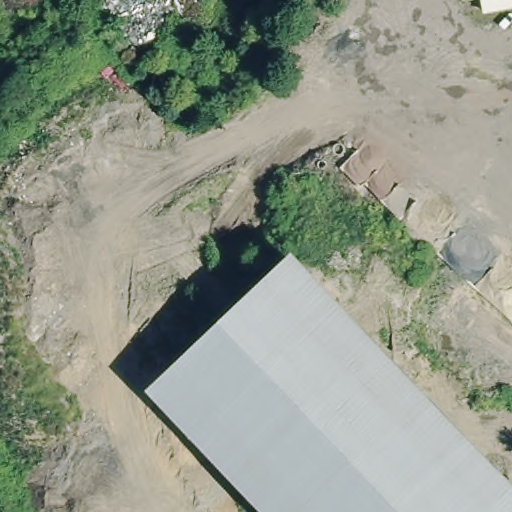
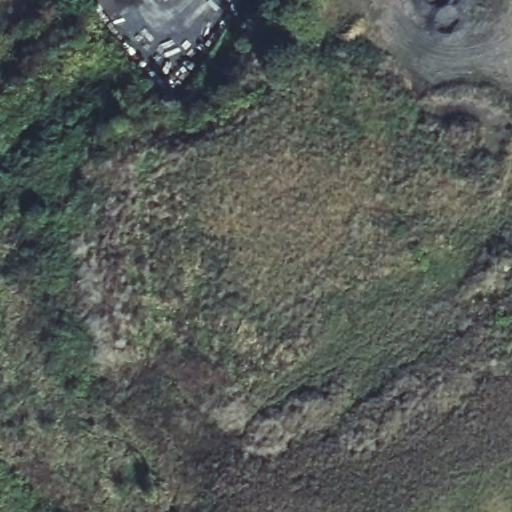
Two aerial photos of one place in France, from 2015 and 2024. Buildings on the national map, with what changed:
demolished [(512,483),(512,512),(255,512),(143,396),(293,254),(512,483)]

